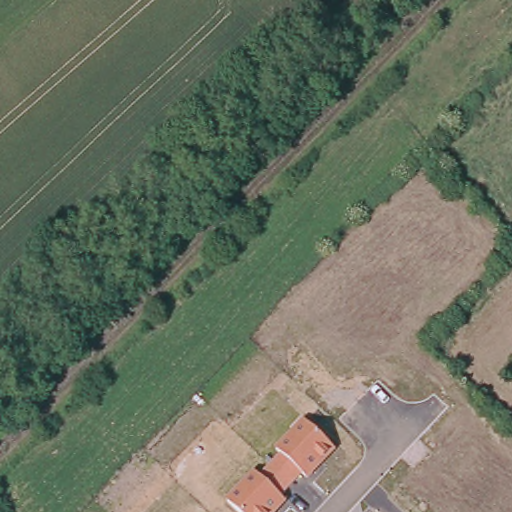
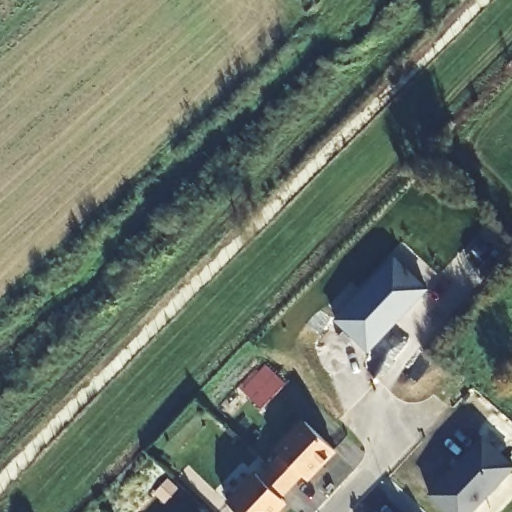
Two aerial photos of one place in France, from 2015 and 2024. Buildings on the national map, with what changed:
new [(334,319),(395,256),(429,288),(369,353),(334,319)]
new [(285,383),(261,409),(238,386),(253,370),(256,372),(264,364),(285,383)]
unchanged [(259,477),(281,453),(276,450),(302,421),(337,452),(309,480),(304,476),(282,498),(287,504),(279,512),(238,512),(226,502),(254,473),(259,477)]
new [(427,495),(483,436),(512,464),(512,471),(474,512),(446,512),(427,495)]

